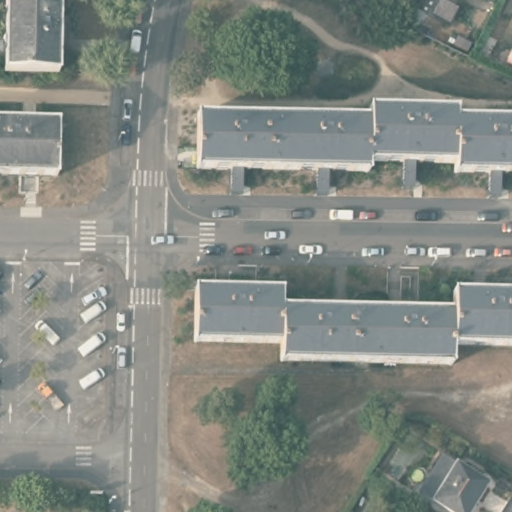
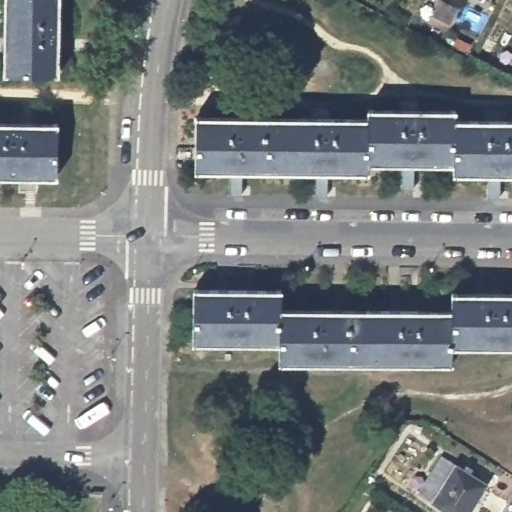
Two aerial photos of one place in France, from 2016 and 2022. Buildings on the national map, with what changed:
unchanged [(6,71),(6,0),(58,0),(57,72),(6,71)]
unchanged [(372,116),(372,107),(457,108),(457,119),(512,120),(512,172),(458,170),(458,162),(372,161),(371,170),(200,165),(201,112),(372,116)]
unchanged [(60,175),(0,174),(0,122),(62,122),(60,175)]
unchanged [(283,305),(455,309),(455,291),(512,293),(512,346),(452,345),(452,364),(281,360),(281,341),(194,339),(195,284),(283,286),(283,305)]
unchanged [(468,512),(450,512),(418,491),(441,453),(487,482),(468,512)]

